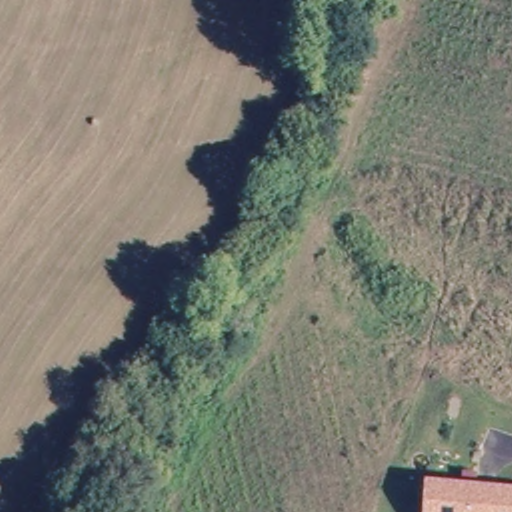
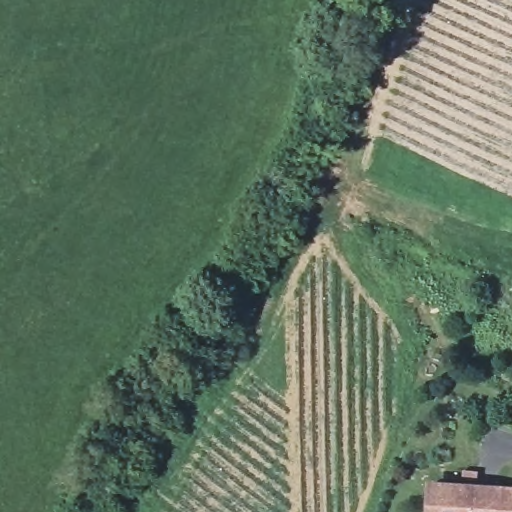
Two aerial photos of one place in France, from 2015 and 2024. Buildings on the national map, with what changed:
unchanged [(512,512),(425,512),(426,484),(512,489),(512,512)]

